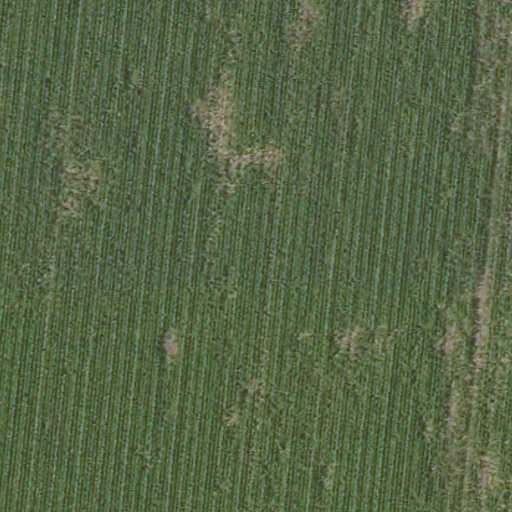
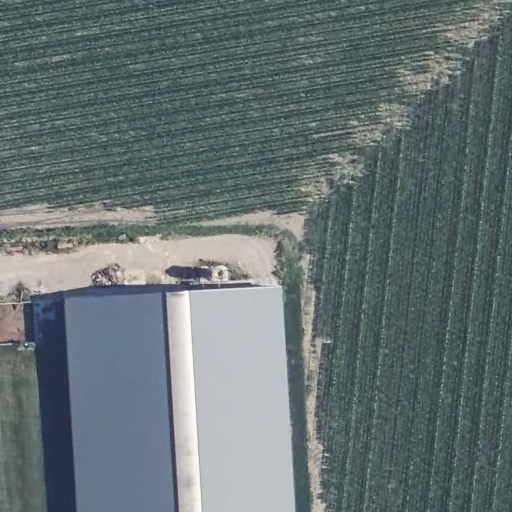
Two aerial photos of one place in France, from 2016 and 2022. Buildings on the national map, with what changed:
new [(61,300),(280,287),(292,512),(73,512),(61,300)]

